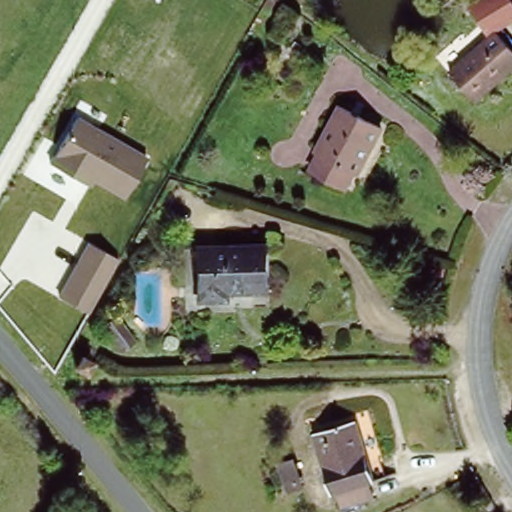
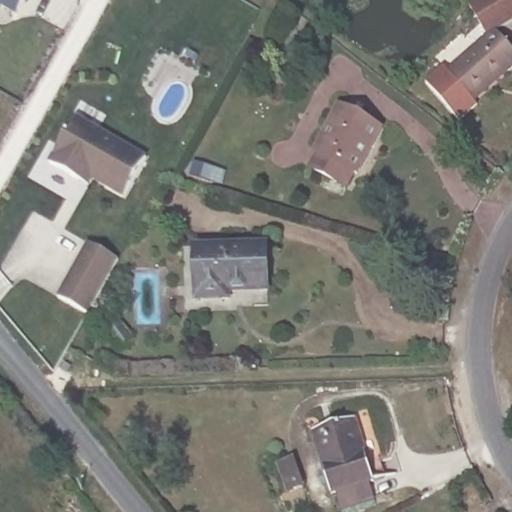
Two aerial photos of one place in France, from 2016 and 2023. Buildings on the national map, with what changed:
new [(0,5),(0,0),(27,0),(19,15),(0,5)]
unchanged [(512,0),(512,20),(488,34),(470,2),(474,0),(512,0)]
unchanged [(453,74),(499,34),(512,48),(512,75),(479,104),(475,100),(453,74)]
unchanged [(381,130),(358,175),(355,173),(347,187),(313,170),(320,155),(315,153),(339,108),(381,130)]
unchanged [(94,178),(89,186),(50,161),(78,117),(147,156),(125,195),(94,178)]
unchanged [(58,295),(87,242),(119,260),(90,315),(58,295)]
unchanged [(267,246),(267,289),(224,289),(224,295),(198,295),(198,245),(267,246)]
unchanged [(127,343),(116,350),(100,328),(111,320),(127,343)]
unchanged [(344,507),(340,495),(335,496),(314,437),(356,423),(377,482),(372,484),(376,496),(344,507)]

